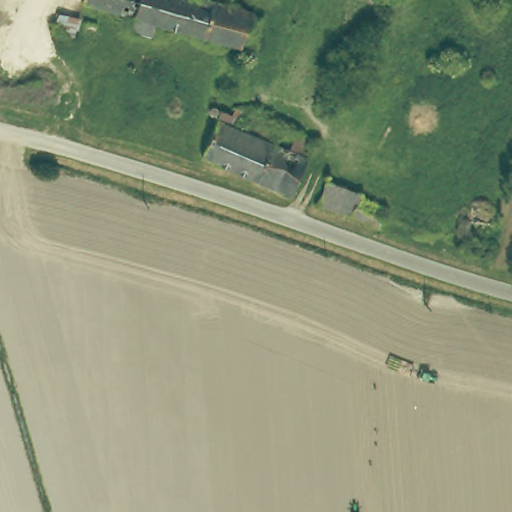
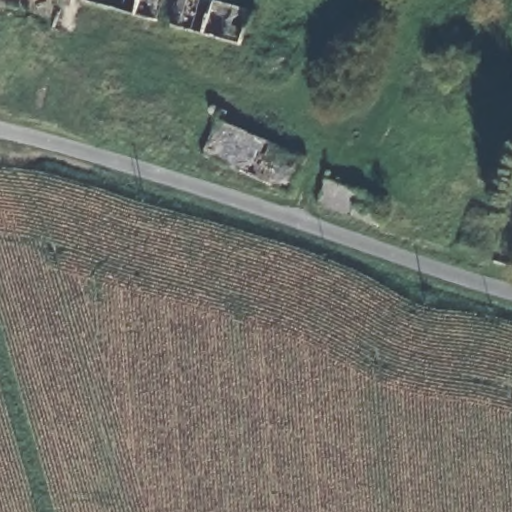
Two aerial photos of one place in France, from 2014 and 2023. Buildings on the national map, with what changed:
unchanged [(134,14),(85,0),(84,0),(138,0),(134,14)]
unchanged [(263,12),(251,48),(156,20),(152,34),(130,27),(134,14),(138,0),(223,0),(263,12)]
unchanged [(300,140),(311,145),(303,164),(219,126),(225,107),(300,140)]
unchanged [(207,163),(219,126),(303,164),(288,199),(207,163)]
unchanged [(356,220),(322,206),(331,180),(365,192),(363,196),(356,220)]
unchanged [(464,241),(470,213),(491,219),(486,247),(464,241)]

